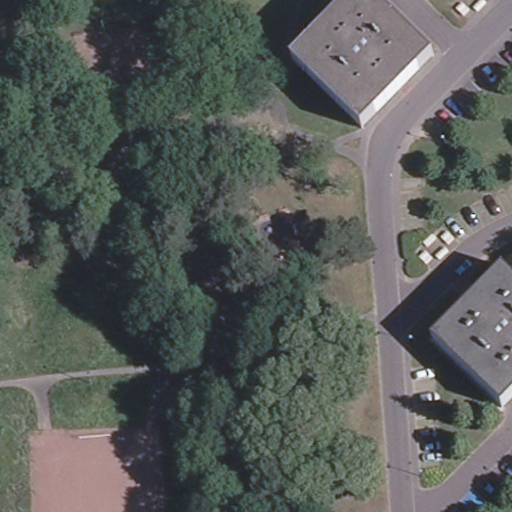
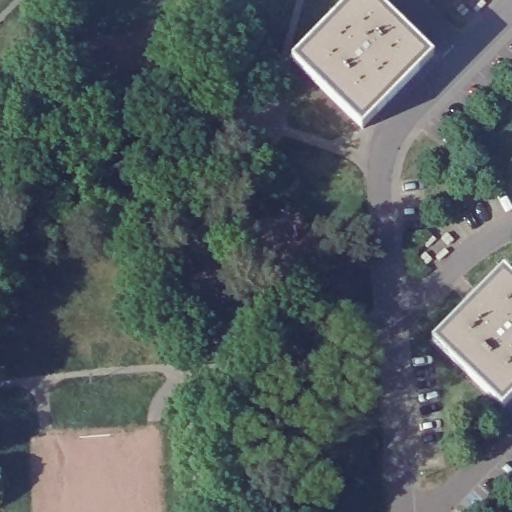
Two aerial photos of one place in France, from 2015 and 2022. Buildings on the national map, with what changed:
unchanged [(351,0),(377,0),(434,57),(361,129),(347,115),(333,101),(290,58),(351,0)]
unchanged [(512,276),(512,403),(504,411),(434,342),(505,269),(512,276)]

